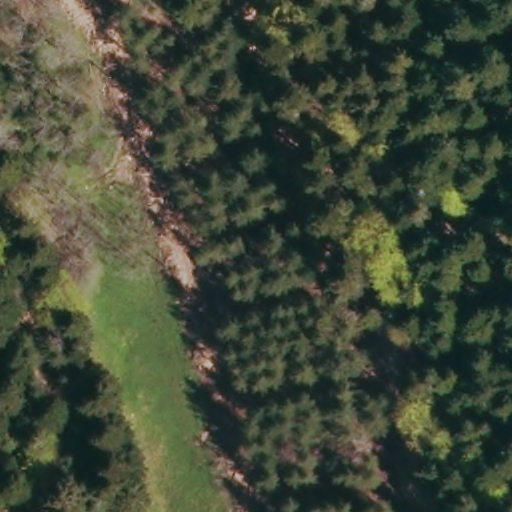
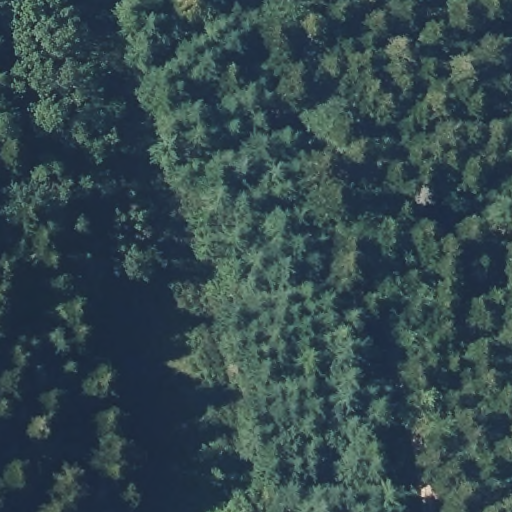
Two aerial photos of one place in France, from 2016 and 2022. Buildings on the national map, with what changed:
unchanged [(110,386),(107,379),(116,376),(119,383),(110,386)]

